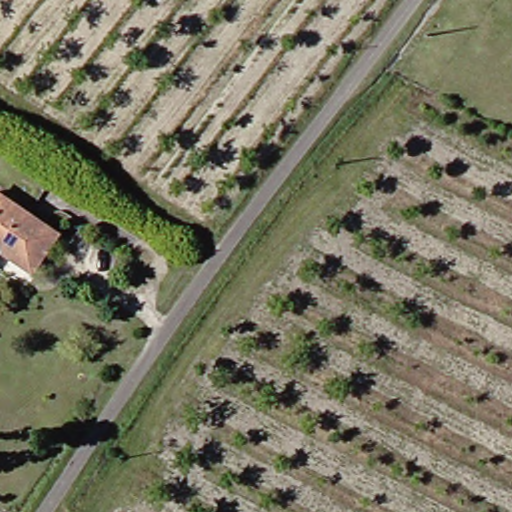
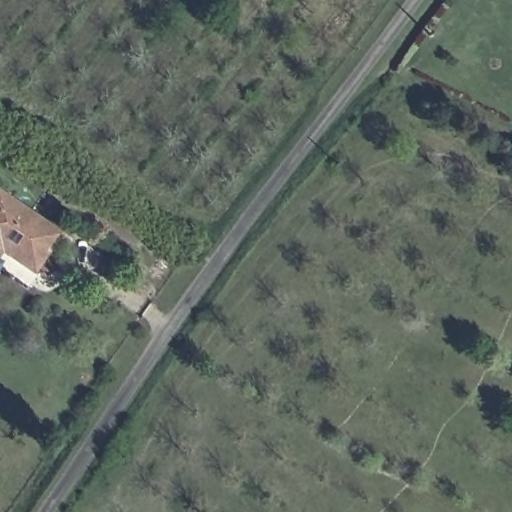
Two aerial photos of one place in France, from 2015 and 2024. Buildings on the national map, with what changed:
unchanged [(25,267),(0,251),(0,198),(47,231),(25,267)]

